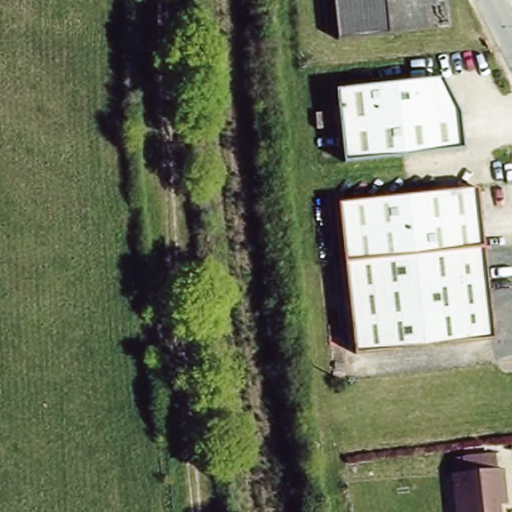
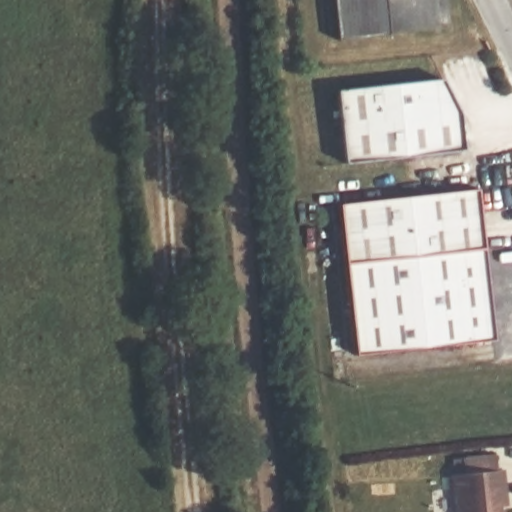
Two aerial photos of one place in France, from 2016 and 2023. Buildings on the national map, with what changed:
unchanged [(392,34),(331,40),(328,0),(389,0),(392,34)]
unchanged [(442,78),(464,117),(466,148),(348,162),(338,87),(442,78)]
unchanged [(336,203),(476,188),(484,246),(343,262),(336,203)]
unchanged [(484,246),(493,337),(355,352),(343,262),(484,246)]
unchanged [(455,474),(455,459),(491,456),(492,471),(499,470),(502,499),(502,507),(495,507),(495,512),(452,512),(448,475),(455,474)]

